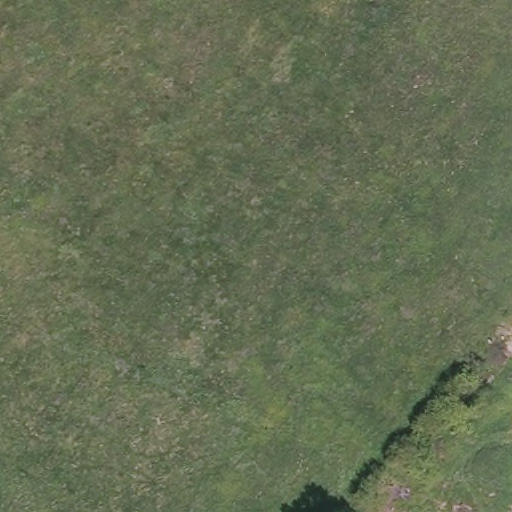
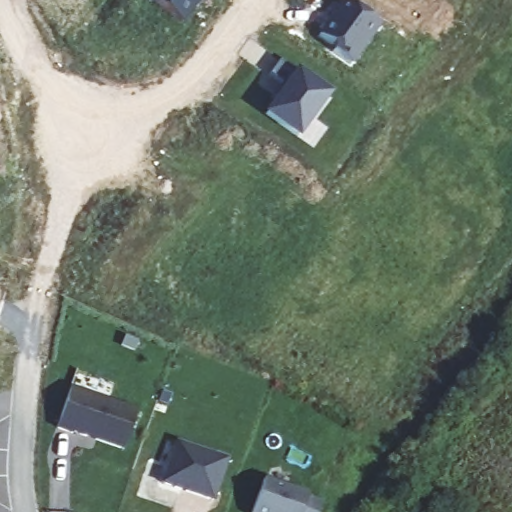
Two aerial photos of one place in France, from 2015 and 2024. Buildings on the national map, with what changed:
new [(183,24),(149,0),(199,0),(183,24)]
new [(379,25),(351,66),(313,40),(340,0),(346,0),(379,25)]
new [(296,138),(264,114),(296,73),(327,96),(296,138)]
new [(70,389),(136,412),(123,450),(95,440),(95,437),(89,435),(85,437),(73,432),(72,433),(55,427),(70,389)]
new [(176,442),(226,459),(212,501),(162,483),(176,442)]
new [(307,495),(306,500),(319,505),(317,512),(252,512),(264,480),(307,495)]

